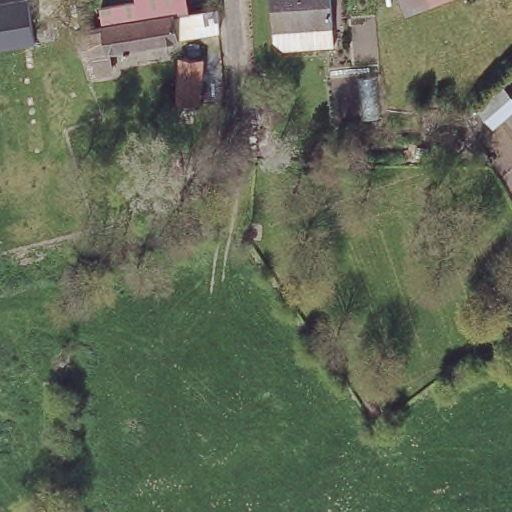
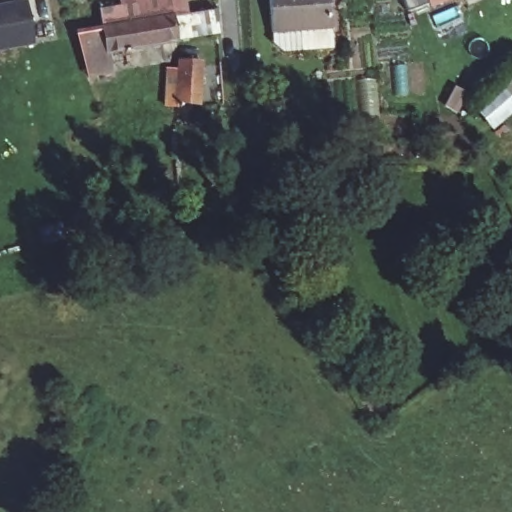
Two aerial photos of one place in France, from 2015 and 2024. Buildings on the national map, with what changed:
unchanged [(0,47),(0,0),(30,0),(34,41),(0,47)]
unchanged [(99,9),(134,3),(133,0),(186,0),(189,13),(155,18),(102,27),(99,9)]
unchanged [(280,44),(279,34),(275,0),(337,0),(340,28),(342,48),(311,52),(292,53),(280,44)]
unchanged [(400,3),(399,0),(432,0),(400,3)]
unchanged [(96,28),(97,28),(102,27),(155,18),(189,13),(193,12),(212,9),(214,26),(215,41),(177,46),(108,57),(111,75),(92,79),(84,30),(96,28)]
unchanged [(180,60),(205,62),(202,109),(187,108),(177,107),(178,86),(180,60)]

